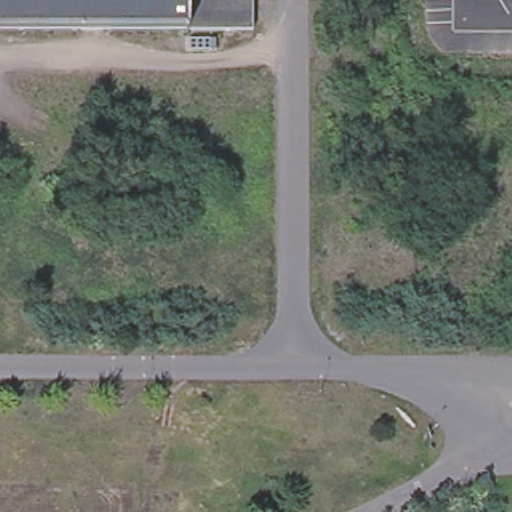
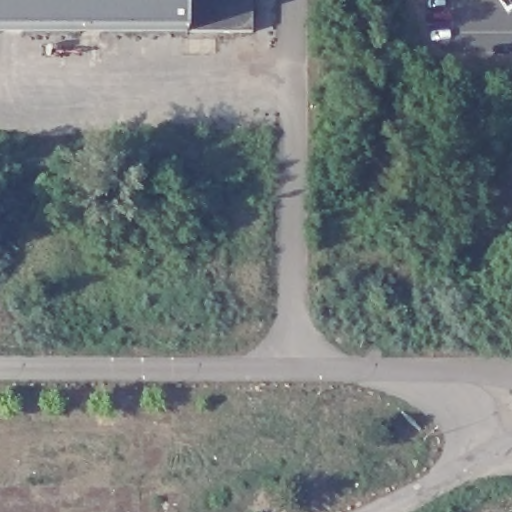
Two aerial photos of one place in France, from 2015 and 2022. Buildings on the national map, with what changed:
unchanged [(249,30),(182,31),(0,31),(0,0),(249,0),(249,30)]

